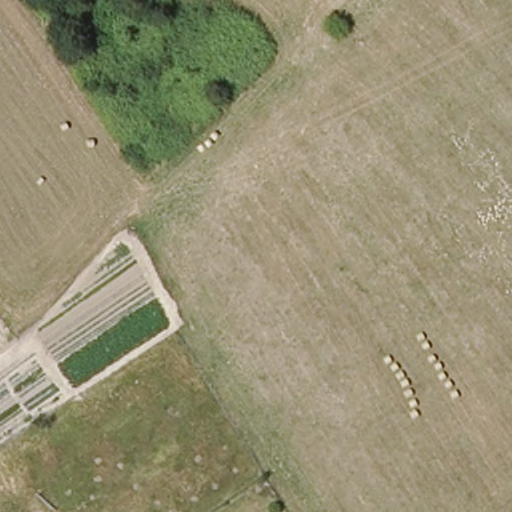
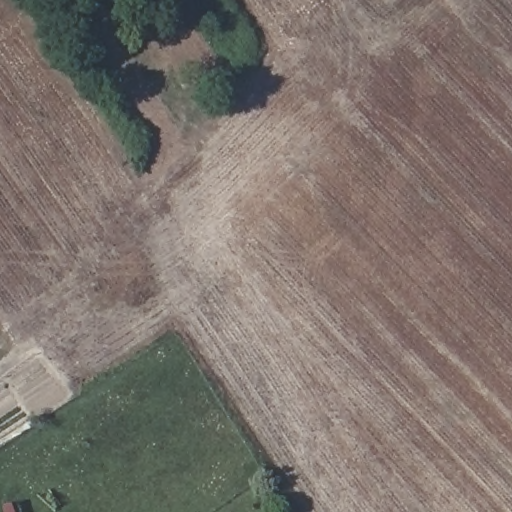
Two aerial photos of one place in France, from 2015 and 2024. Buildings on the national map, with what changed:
[]

